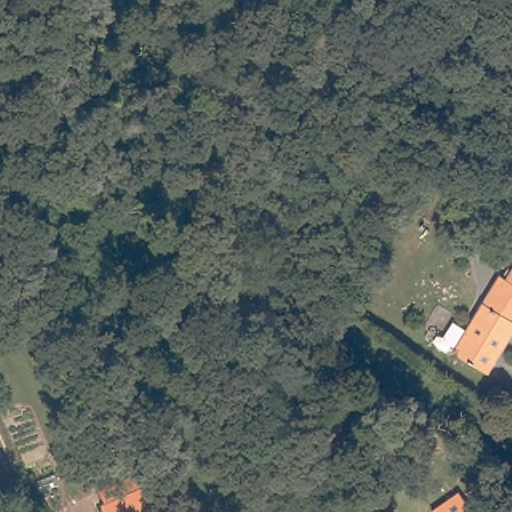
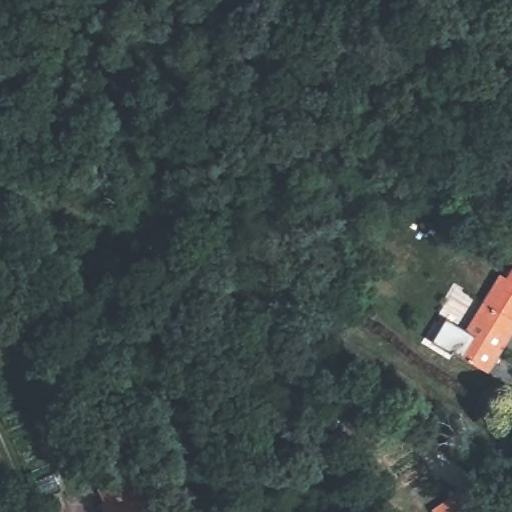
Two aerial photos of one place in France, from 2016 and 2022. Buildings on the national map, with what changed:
unchanged [(426,342),(430,337),(437,337),(447,322),(460,330),(496,276),(502,281),(512,266),(512,324),(480,373),(446,351),(443,355),(431,347),(426,342)]
unchanged [(120,494),(142,485),(157,512),(108,512),(102,501),(120,494)]
unchanged [(435,511),(461,494),(463,497),(474,512),(436,512),(435,511)]

